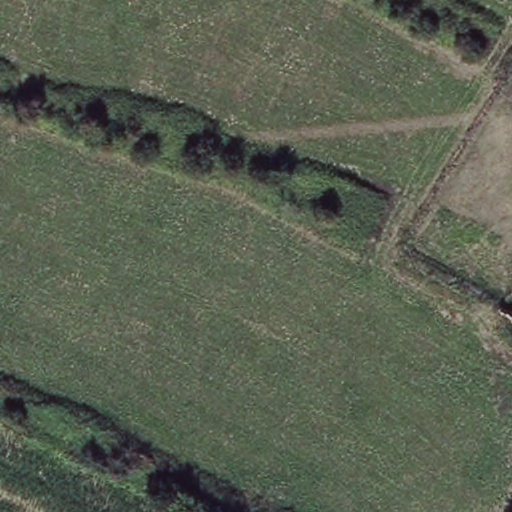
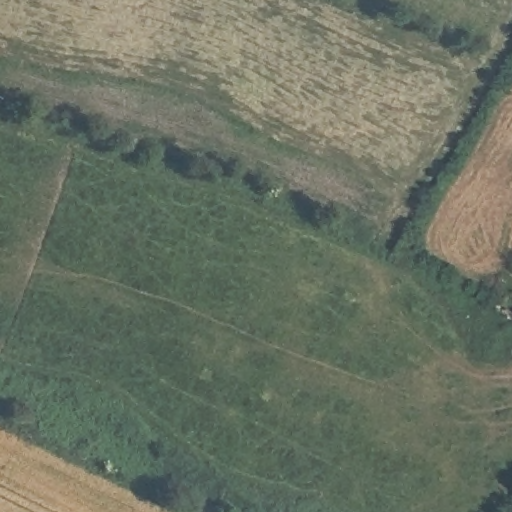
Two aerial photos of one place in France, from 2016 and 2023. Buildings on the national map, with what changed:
unchanged [(504,313),(496,308),(507,289),(512,292),(512,319),(504,313)]

